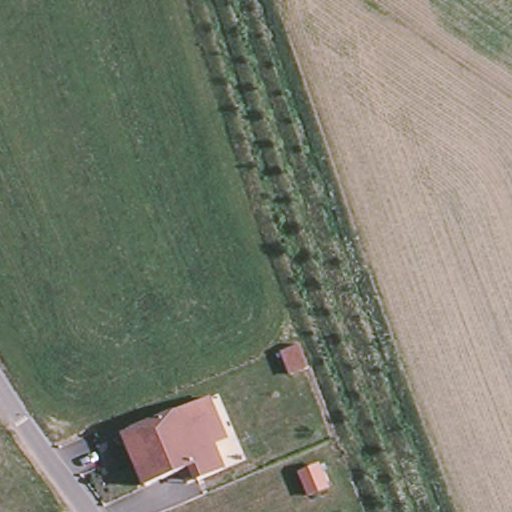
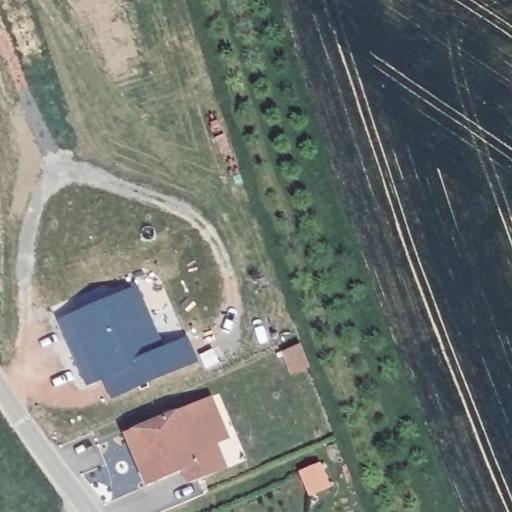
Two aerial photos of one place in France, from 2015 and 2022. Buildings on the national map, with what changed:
new [(164,346),(188,337),(198,363),(111,402),(103,380),(84,388),(55,321),(137,286),(164,346)]
new [(301,345),(310,371),(291,376),(283,351),(301,345)]
unchanged [(144,490),(122,436),(195,406),(209,400),(226,441),(213,447),(223,474),(198,485),(197,484),(186,488),(181,475),(144,490)]
new [(320,466),(331,490),(310,496),(301,472),(320,466)]

